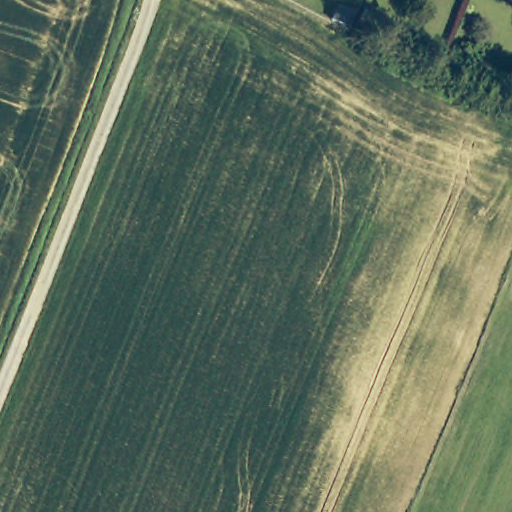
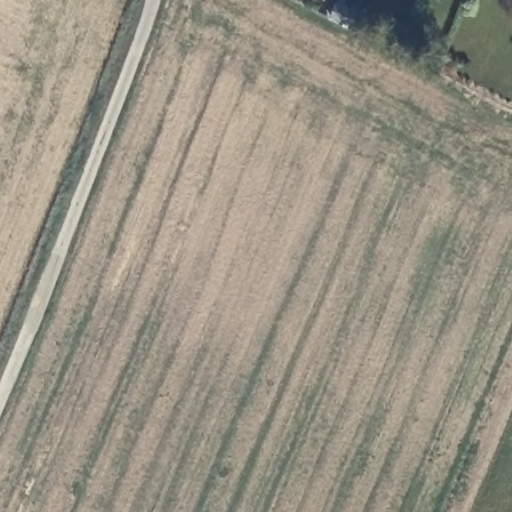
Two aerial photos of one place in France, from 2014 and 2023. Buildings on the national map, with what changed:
[]

